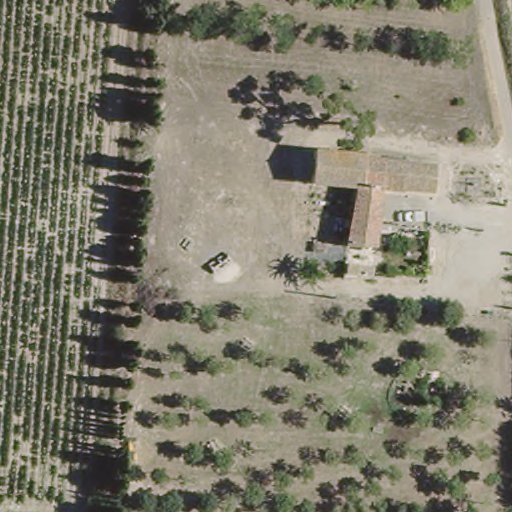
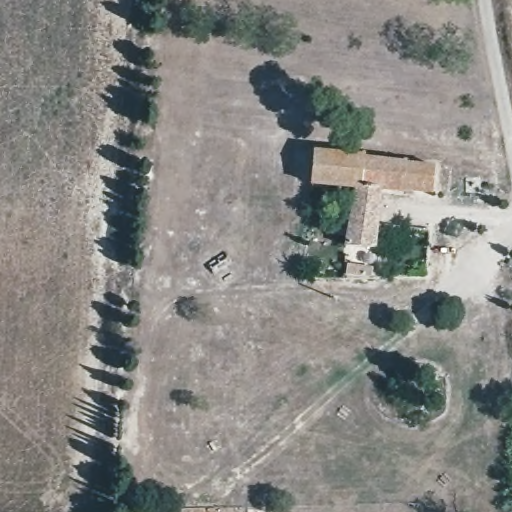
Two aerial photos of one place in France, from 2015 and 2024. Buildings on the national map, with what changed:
unchanged [(368,185),(364,185),(341,182),(296,177),(299,144),(348,148),(349,141),(351,140),(357,141),(358,147),(379,150),(379,145),(384,144),(389,145),(389,151),(434,156),(432,190),(368,185)]
unchanged [(335,245),(339,196),(341,182),(364,185),(368,185),(361,246),(335,245)]

